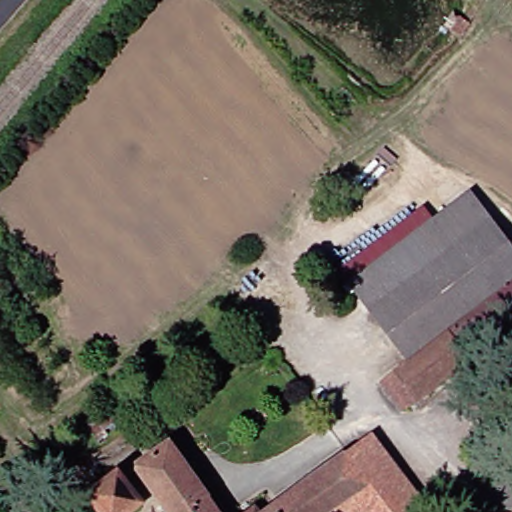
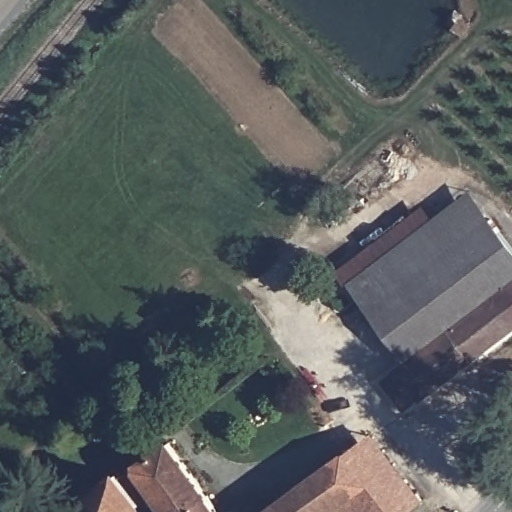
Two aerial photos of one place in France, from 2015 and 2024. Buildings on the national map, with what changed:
unchanged [(479,318),(418,363),(357,287),(480,192),(512,232),(512,337),(501,346),(479,318)]
unchanged [(114,402),(126,419),(104,435),(92,416),(114,402)]
unchanged [(387,426),(419,469),(398,484),(366,442),(387,426)]
unchanged [(177,440),(232,512),(185,512),(160,479),(149,487),(135,468),(177,440)]
unchanged [(366,442),(398,484),(419,469),(438,494),(413,512),(349,512),(347,509),(342,512),(273,512),(366,442)]
unchanged [(128,470),(144,492),(151,501),(136,512),(110,512),(96,494),(128,470)]

